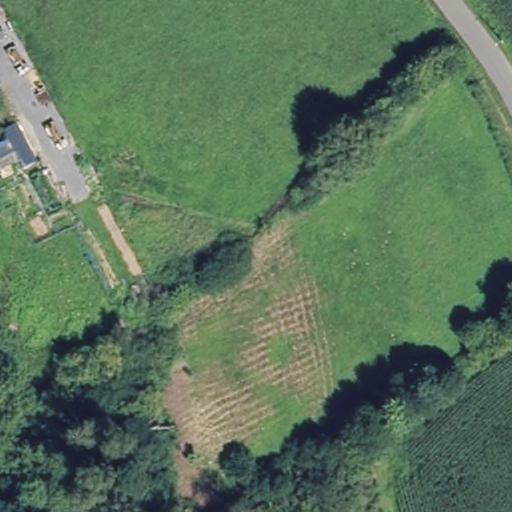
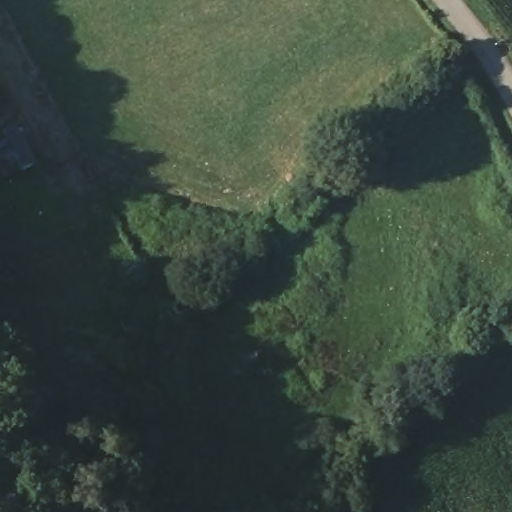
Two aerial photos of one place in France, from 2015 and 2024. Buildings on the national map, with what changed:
[]

